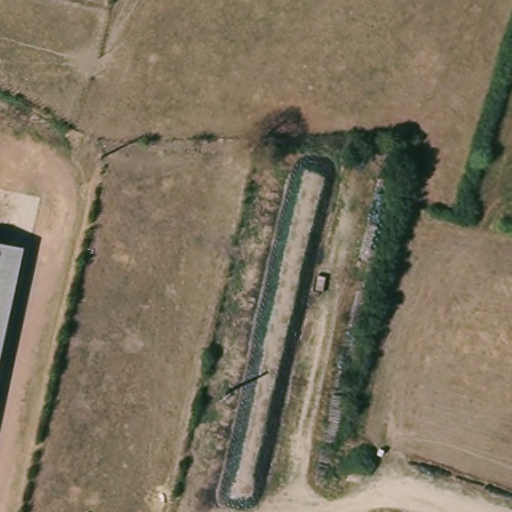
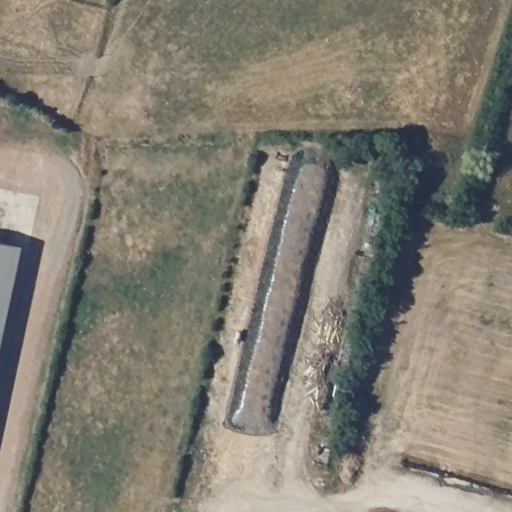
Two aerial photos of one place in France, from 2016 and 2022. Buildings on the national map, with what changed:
unchanged [(0,365),(0,238),(26,243),(0,365)]

